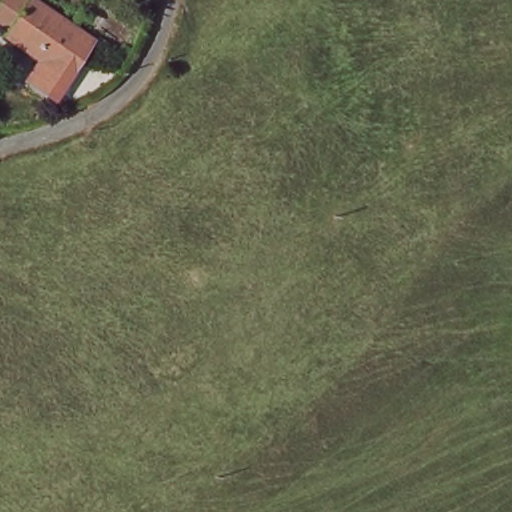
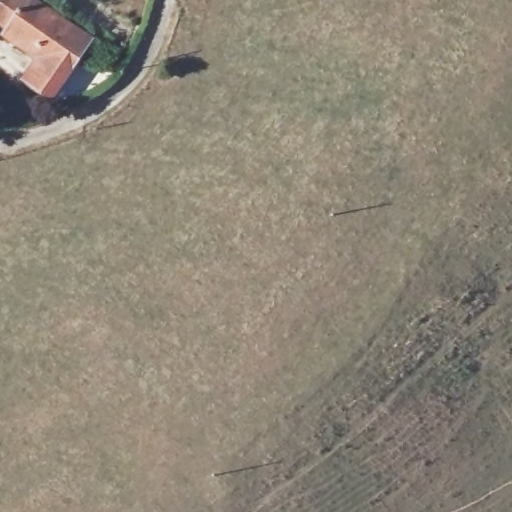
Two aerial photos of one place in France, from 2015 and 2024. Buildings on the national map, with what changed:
unchanged [(69,91),(63,85),(48,107),(21,86),(37,65),(4,38),(10,30),(0,22),(0,5),(4,0),(27,0),(96,55),(69,91)]

